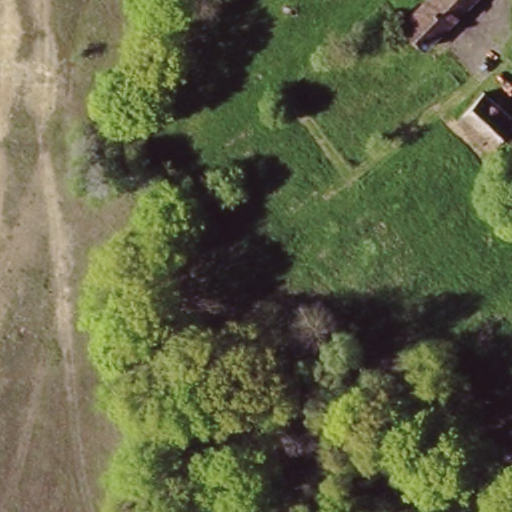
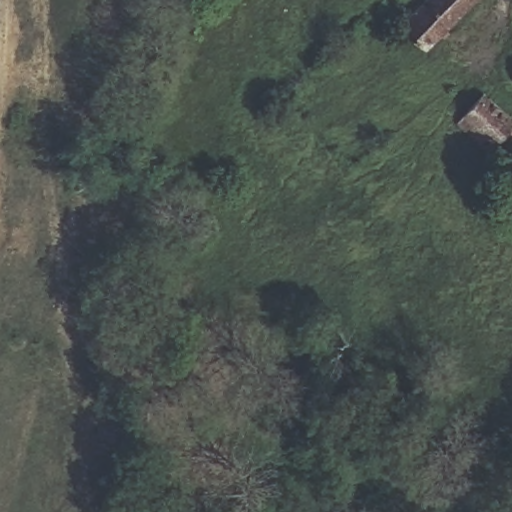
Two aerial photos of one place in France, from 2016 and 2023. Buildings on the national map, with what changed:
unchanged [(398,19),(418,0),(478,0),(428,48),(398,19)]
unchanged [(512,160),(505,168),(456,119),(489,88),(512,109),(512,160)]

